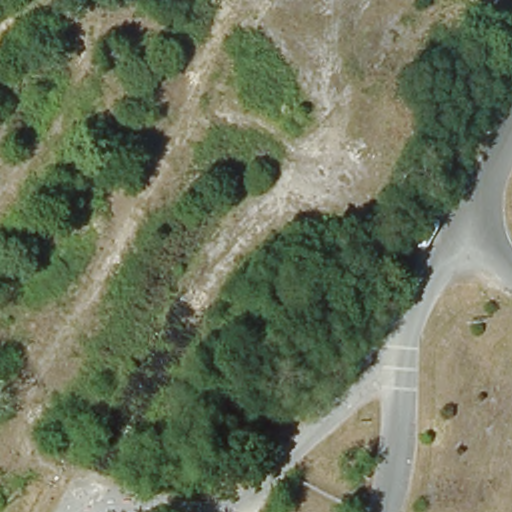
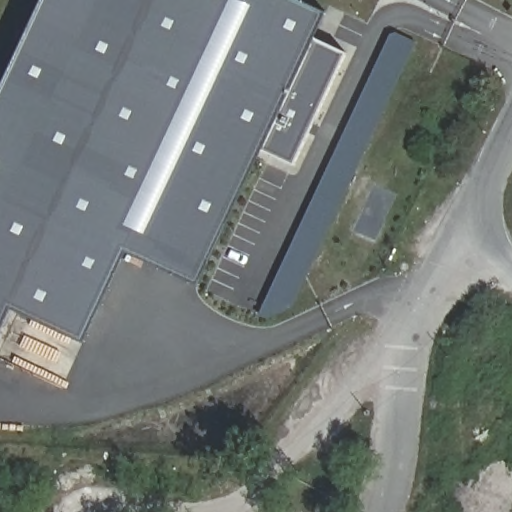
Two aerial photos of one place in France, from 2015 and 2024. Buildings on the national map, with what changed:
new [(259,150),(198,283),(126,250),(83,341),(10,306),(0,329),(0,94),(45,0),(293,0),(324,15),(313,38),(347,53),(293,165),(259,150)]
new [(294,308),(266,318),(258,315),(391,30),(417,43),(294,308)]

